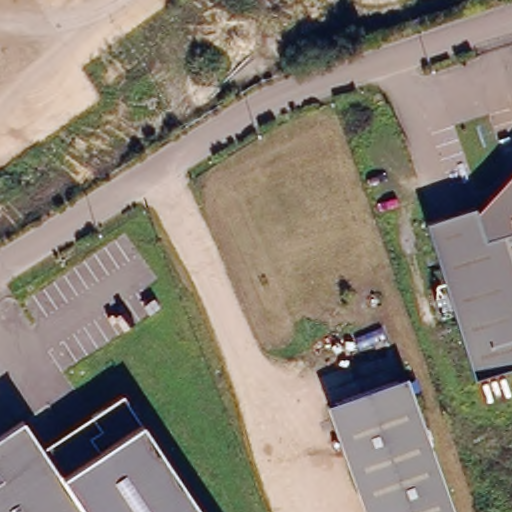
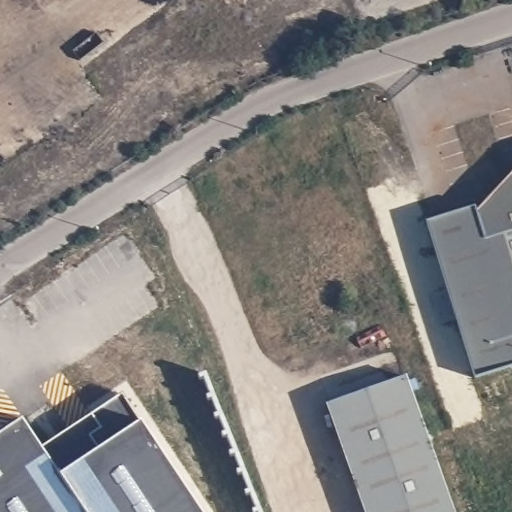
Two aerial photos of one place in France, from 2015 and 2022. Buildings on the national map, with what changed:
unchanged [(512,175),(512,369),(475,381),(425,224),(473,208),(475,215),(512,175)]
unchanged [(444,512),(359,512),(322,407),(398,380),(444,512)]
unchanged [(199,512),(87,512),(42,443),(121,396),(199,512)]
unchanged [(27,419),(42,443),(87,512),(0,512),(0,437),(27,419)]

